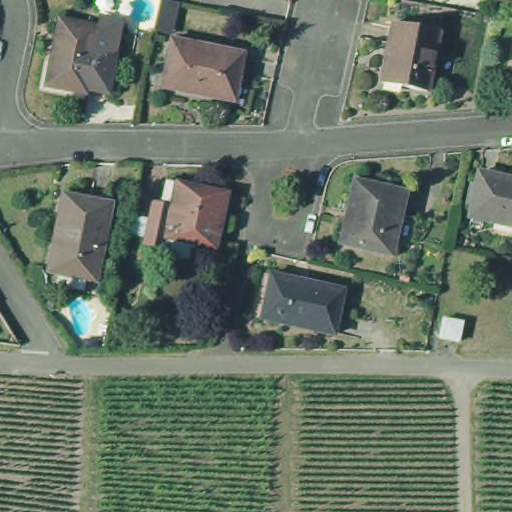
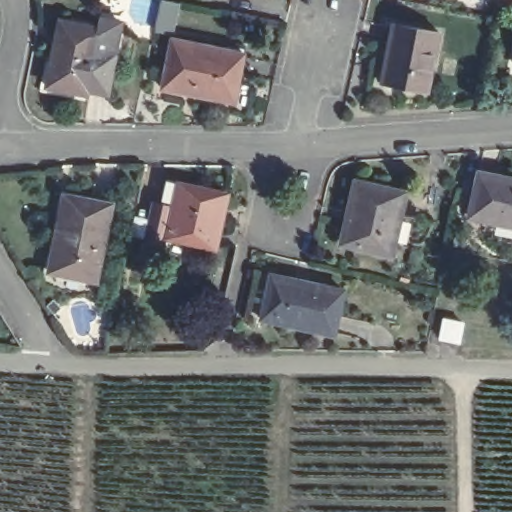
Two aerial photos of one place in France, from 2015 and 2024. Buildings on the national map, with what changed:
unchanged [(496,1),(496,0),(512,0),(512,4),(496,1)]
unchanged [(94,84),(93,93),(48,85),(53,57),(59,58),(67,15),(105,22),(107,12),(125,15),(128,20),(127,26),(123,49),(116,88),(94,84)]
unchanged [(398,17),(443,26),(432,86),(386,76),(398,17)]
unchanged [(164,82),(175,33),(246,48),(236,97),(164,82)]
unchanged [(479,166),(512,174),(512,220),(468,209),(479,166)]
unchanged [(411,193),(396,254),(339,240),(347,205),(353,206),(359,182),(411,193)]
unchanged [(236,194),(225,248),(175,238),(186,184),(236,194)]
unchanged [(73,190),(119,200),(104,274),(58,265),(73,190)]
unchanged [(276,271),(347,287),(338,328),(266,312),(276,271)]
unchanged [(461,325),(456,343),(439,339),(444,320),(461,325)]

